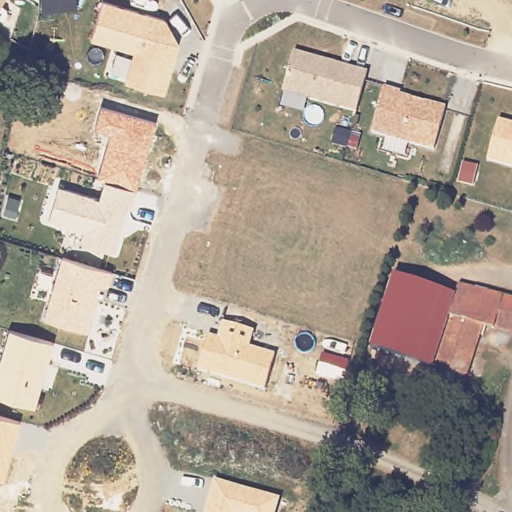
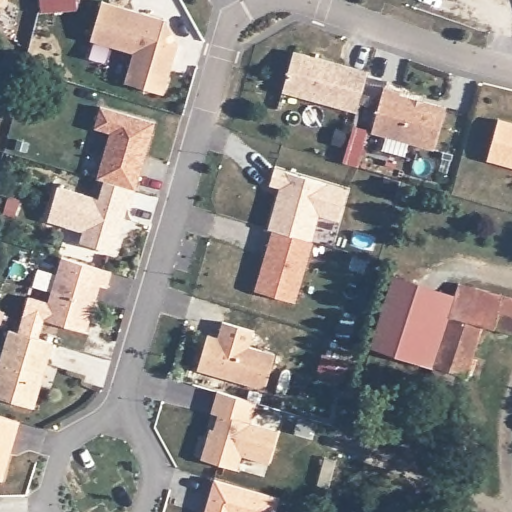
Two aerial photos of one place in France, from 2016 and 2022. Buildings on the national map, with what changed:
unchanged [(0,7),(0,0),(5,0),(0,7)]
new [(80,9),(44,12),(45,8),(43,0),(79,0),(80,9)]
unchanged [(102,1),(165,20),(180,47),(165,96),(122,85),(131,54),(90,41),(102,1)]
unchanged [(367,72),(356,114),(282,93),(292,51),(367,72)]
unchanged [(444,107),(432,152),(370,133),(382,91),(444,107)]
unchanged [(47,221),(58,185),(97,196),(102,180),(96,179),(107,133),(92,130),(102,105),(155,121),(115,253),(80,244),(82,232),(47,221)]
unchanged [(496,121),(512,125),(512,169),(486,162),(496,121)]
new [(274,168),(348,189),(340,222),(319,216),(312,242),(314,242),(296,301),(255,290),(272,231),(268,230),(280,187),(269,185),(274,168)]
unchanged [(117,272),(112,290),(103,288),(91,335),(46,322),(65,259),(117,272)]
unchanged [(431,362),(371,342),(394,271),(455,291),(431,362)]
unchanged [(431,379),(436,364),(431,362),(455,291),(458,281),(512,294),(512,328),(485,321),(466,373),(457,370),(451,386),(431,379)]
new [(46,322),(37,338),(17,332),(27,297),(52,303),(46,322)]
unchanged [(197,372),(207,334),(217,336),(220,323),(255,332),(250,347),(275,353),(263,388),(197,372)]
unchanged [(52,343),(34,408),(0,398),(0,356),(7,329),(52,343)]
new [(322,354),(347,360),(342,379),(317,373),(322,354)]
new [(214,429),(217,415),(210,413),(217,390),(257,403),(251,423),(280,432),(269,464),(242,456),(239,469),(201,459),(210,427),(214,429)]
unchanged [(1,482),(0,481),(0,416),(21,422),(1,482)]
unchanged [(280,496),(275,512),(203,512),(212,478),(280,496)]

